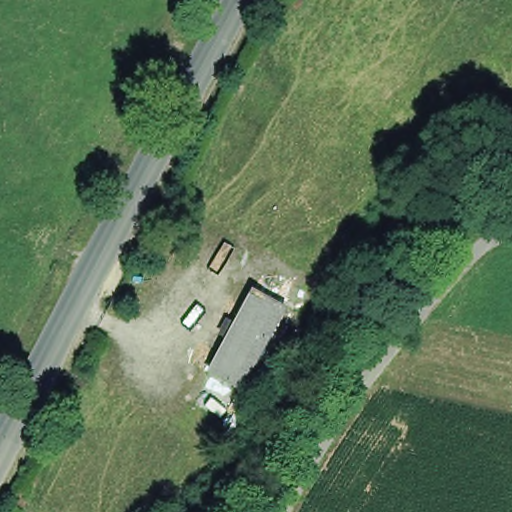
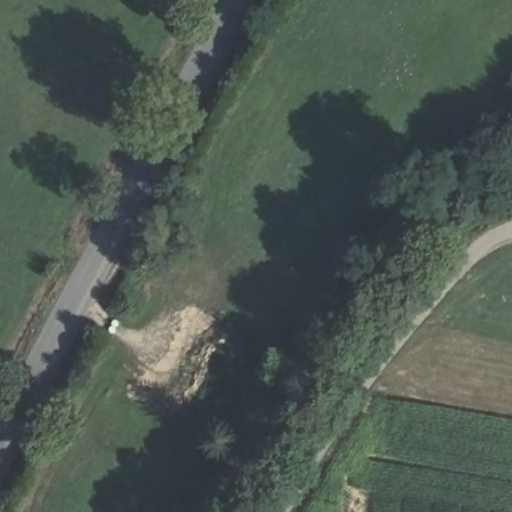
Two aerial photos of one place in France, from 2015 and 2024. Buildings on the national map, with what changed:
demolished [(209,369),(254,287),(289,304),(248,389),(209,369)]
demolished [(239,394),(225,418),(197,404),(210,379),(239,394)]

